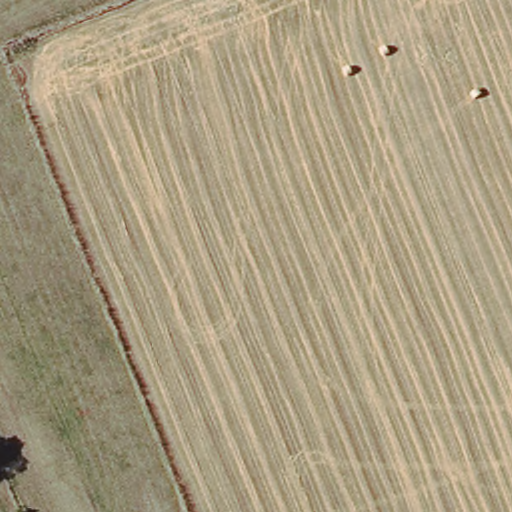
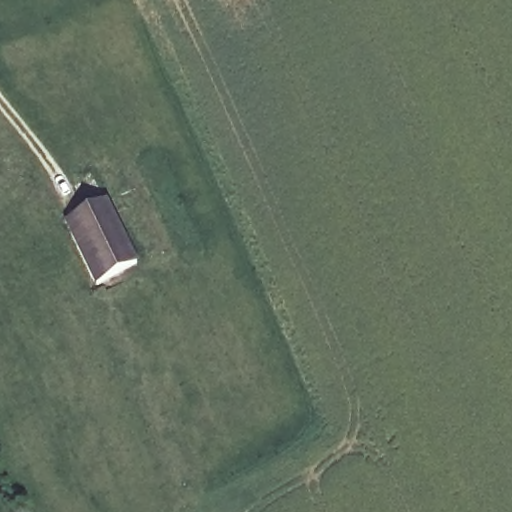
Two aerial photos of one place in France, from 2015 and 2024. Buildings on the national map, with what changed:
new [(140,263),(96,284),(66,220),(109,199),(140,263)]

